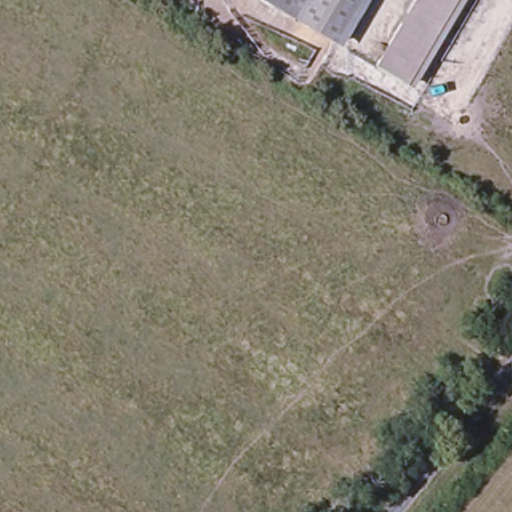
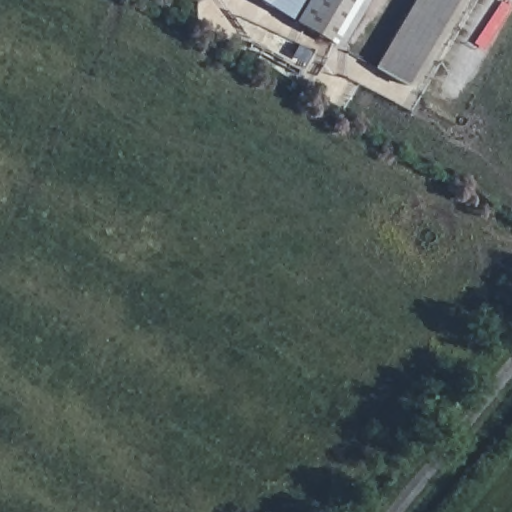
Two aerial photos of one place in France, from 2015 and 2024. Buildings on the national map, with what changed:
unchanged [(258,0),(299,0),(287,18),(258,0)]
unchanged [(299,0),(370,0),(340,51),(287,18),(299,0)]
unchanged [(367,80),(418,0),(461,0),(397,98),(367,80)]

